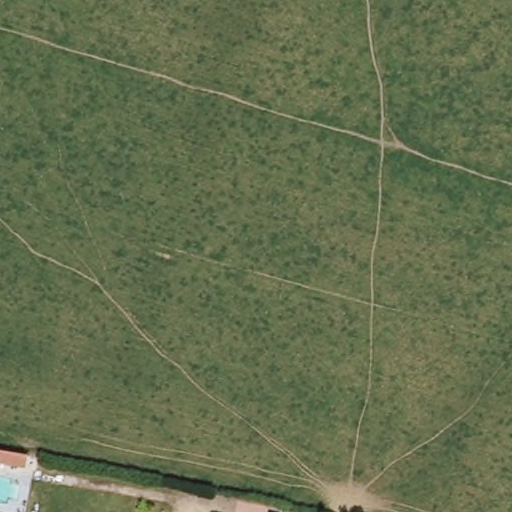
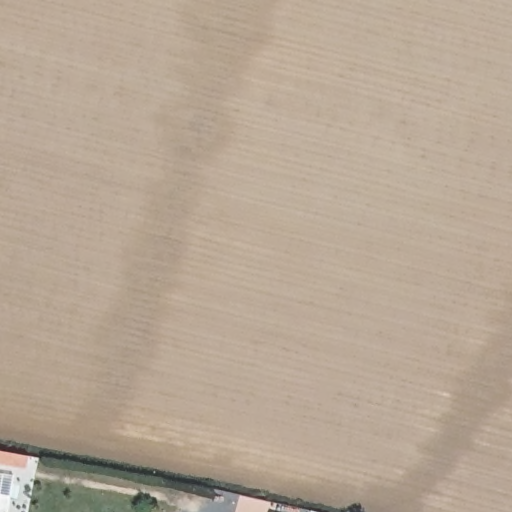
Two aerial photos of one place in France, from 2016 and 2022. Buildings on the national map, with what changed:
unchanged [(0,450),(27,455),(25,468),(0,463),(0,450)]

